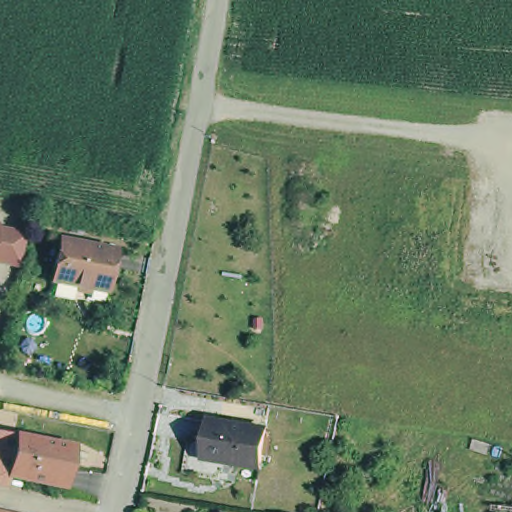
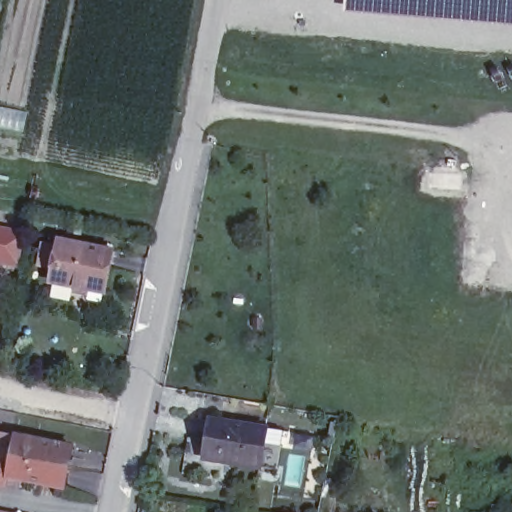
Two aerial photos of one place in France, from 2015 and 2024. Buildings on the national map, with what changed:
new [(512,25),(473,21),(398,17),(341,12),(342,0),(512,0),(512,25)]
unchanged [(27,234),(20,267),(0,265),(0,229),(27,234)]
unchanged [(104,290),(63,282),(58,281),(53,279),(61,237),(67,238),(73,239),(113,247),(104,290)]
unchanged [(269,434),(266,463),(209,453),(215,414),(271,424),(269,434)]
unchanged [(75,451),(73,463),(69,462),(68,464),(63,490),(7,478),(0,477),(0,436),(15,439),(64,449),(75,451)]

